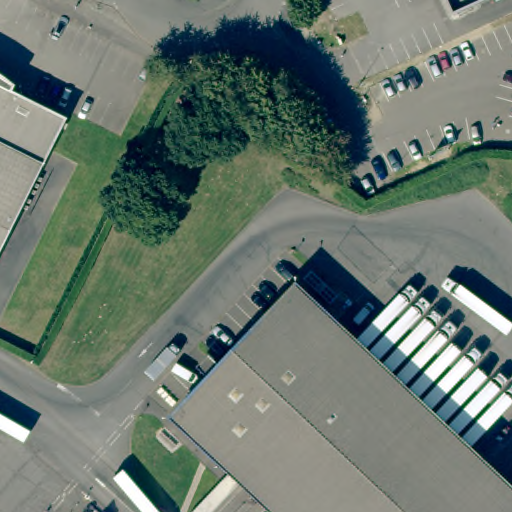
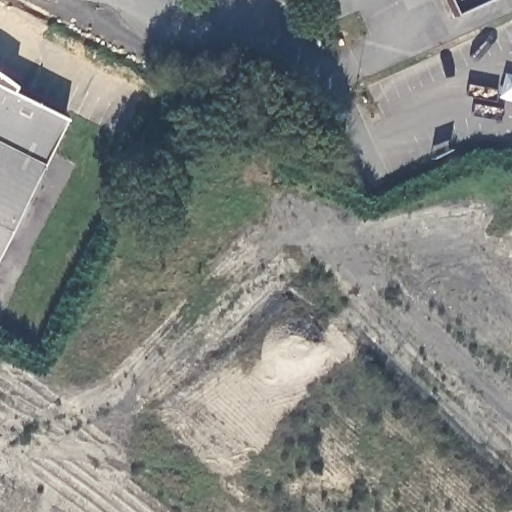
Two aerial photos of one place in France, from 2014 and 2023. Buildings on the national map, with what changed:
unchanged [(454,16),(447,0),(488,0),(454,16)]
unchanged [(7,97),(0,93),(0,79),(11,89),(7,97)]
unchanged [(0,93),(7,97),(56,120),(0,235),(0,93)]
unchanged [(271,111),(267,122),(251,115),(255,105),(271,111)]
unchanged [(309,157),(304,166),(288,156),(293,147),(309,157)]
demolished [(276,512),(177,418),(295,293),(512,498),(512,512),(276,512)]

